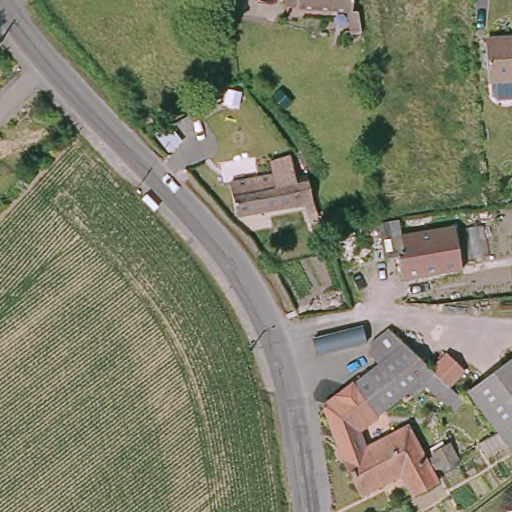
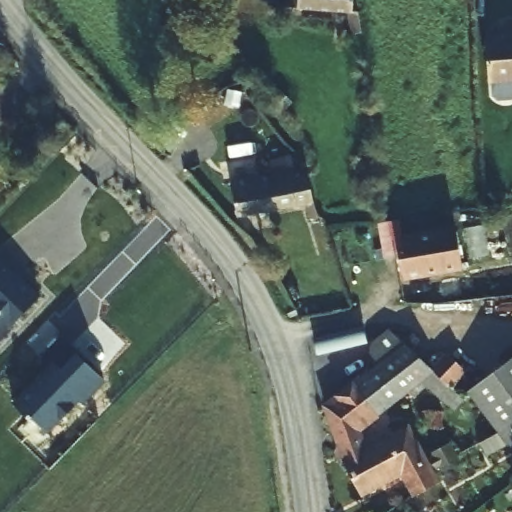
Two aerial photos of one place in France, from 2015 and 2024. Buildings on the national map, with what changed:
unchanged [(223,24),(203,22),(206,0),(225,0),(223,24)]
unchanged [(346,14),(352,12),(358,39),(345,39),(341,18),(280,14),(281,3),(275,2),(275,0),(347,0),(346,14)]
unchanged [(512,33),(512,73),(484,75),(481,35),(512,33)]
unchanged [(306,223),(300,224),(297,209),(230,222),(223,189),(262,179),(259,167),(284,161),(287,173),(296,171),(306,223)]
unchanged [(400,221),(405,239),(455,231),(460,271),(404,281),(400,259),(385,261),(377,224),(400,221)]
new [(0,340),(0,258),(40,297),(0,340)]
unchanged [(373,420),(356,433),(334,450),(314,387),(336,372),(334,364),(331,365),(330,359),(324,356),(314,359),(310,343),(357,331),(362,344),(368,346),(386,333),(422,368),(430,375),(434,379),(456,400),(446,410),(425,389),(401,407),(397,401),(373,420)]
new [(11,402),(50,360),(60,369),(75,353),(105,382),(85,405),(80,400),(48,433),(11,402)]
unchanged [(502,434),(500,433),(472,390),(512,358),(512,450),(502,434)]
unchanged [(334,450),(356,433),(373,420),(385,441),(404,432),(426,472),(431,487),(408,498),(399,479),(356,500),(341,469),(335,471),(327,455),(334,450)]

